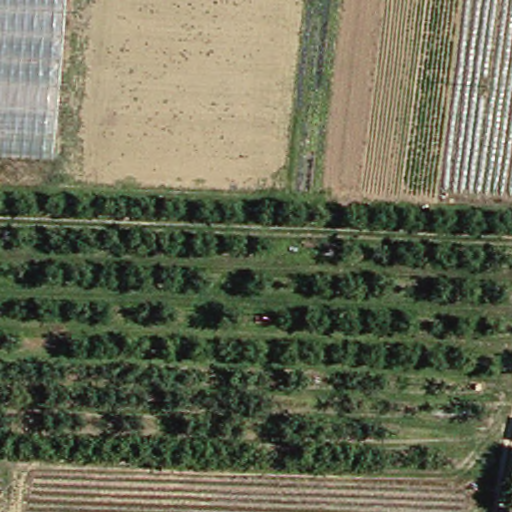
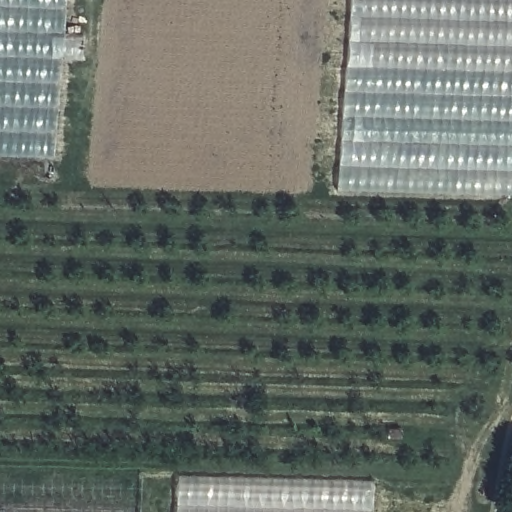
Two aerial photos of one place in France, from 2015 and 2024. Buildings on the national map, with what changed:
new [(0,157),(0,0),(68,0),(54,159),(0,157)]
new [(338,191),(350,0),(512,0),(512,195),(338,191)]
new [(0,512),(0,469),(144,475),(142,512),(0,512)]
new [(176,512),(177,475),(376,480),(373,512),(176,512)]
unchanged [(512,512),(509,512),(509,511),(512,512)]

